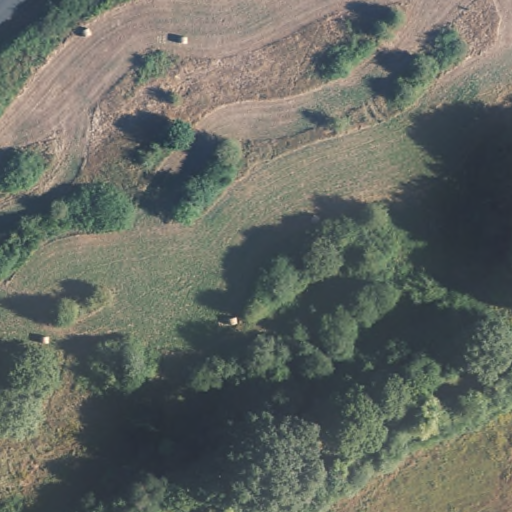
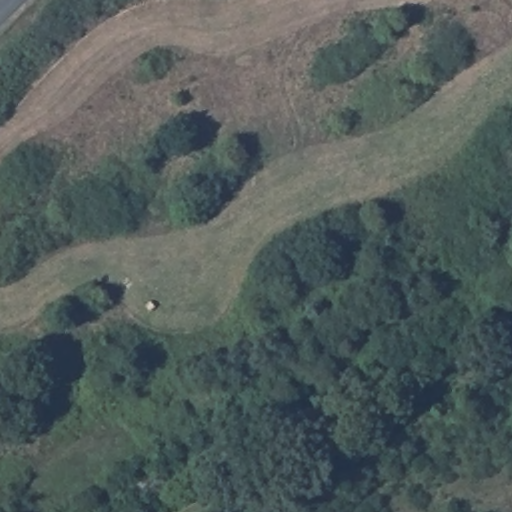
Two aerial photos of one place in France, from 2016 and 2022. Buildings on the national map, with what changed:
[]

